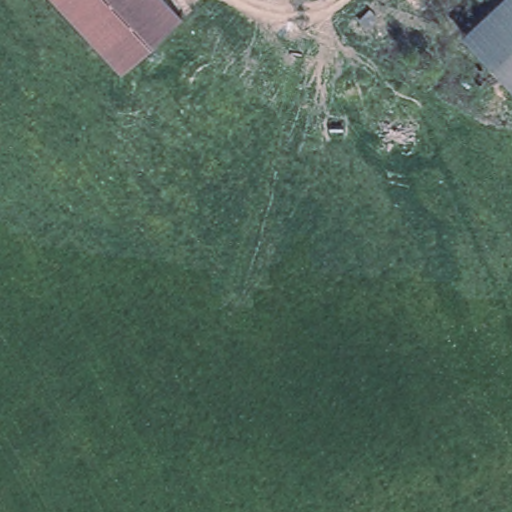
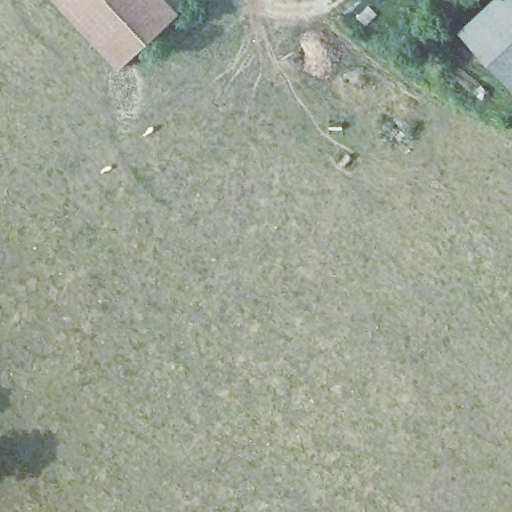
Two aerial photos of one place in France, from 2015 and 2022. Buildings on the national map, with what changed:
unchanged [(119,71),(54,0),(165,0),(179,15),(119,71)]
unchanged [(512,88),(458,31),(490,0),(512,0),(512,88)]

